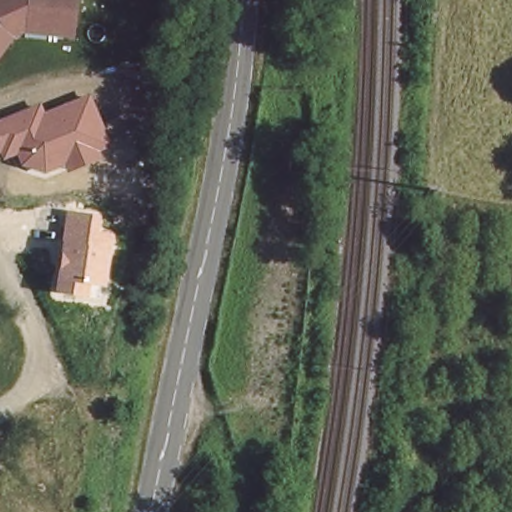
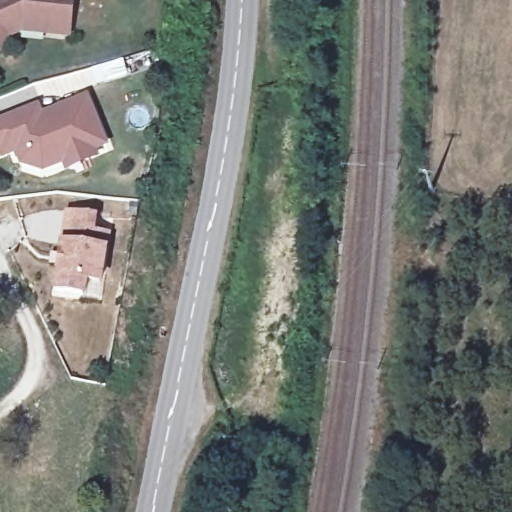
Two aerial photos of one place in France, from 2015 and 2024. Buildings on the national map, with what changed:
unchanged [(69,39),(24,32),(13,37),(0,58),(0,0),(76,0),(69,39)]
unchanged [(40,104),(44,112),(89,95),(111,147),(98,151),(100,159),(66,171),(63,164),(43,172),(20,165),(16,155),(2,161),(0,158),(0,119),(40,104)]
unchanged [(98,216),(96,232),(112,234),(106,285),(89,282),(88,295),(53,290),(65,211),(98,216)]

